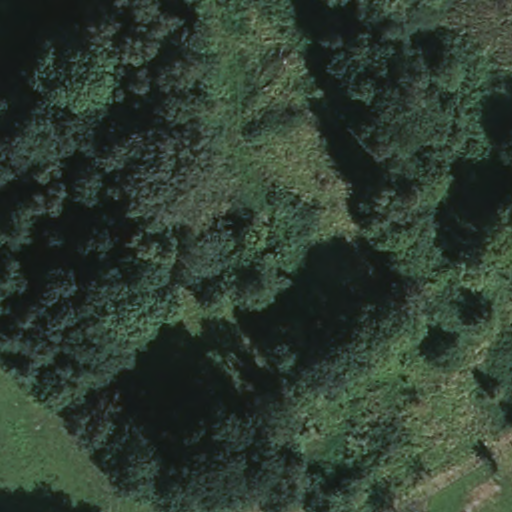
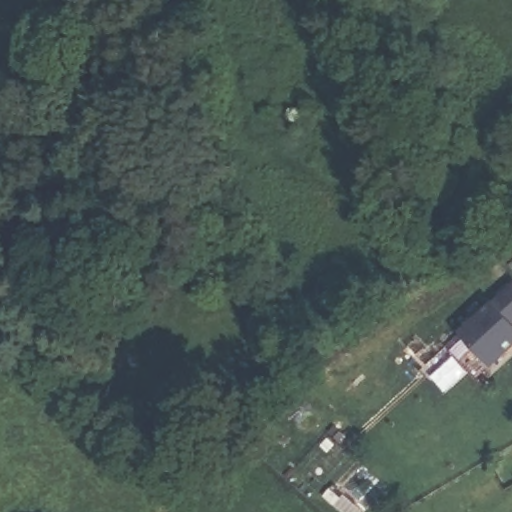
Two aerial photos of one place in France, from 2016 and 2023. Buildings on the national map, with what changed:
new [(512,322),(510,323),(512,326),(512,344),(490,365),(460,334),(512,284),(512,322)]

